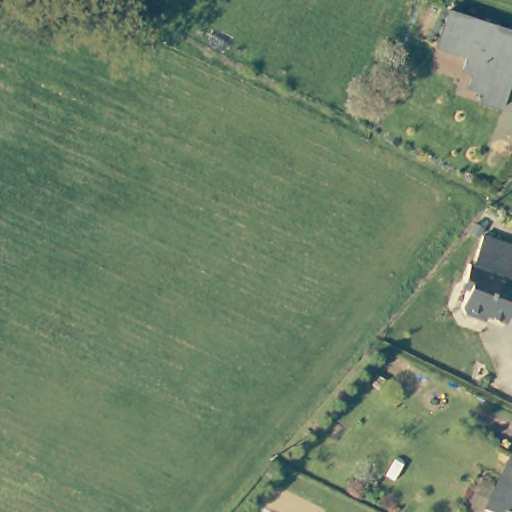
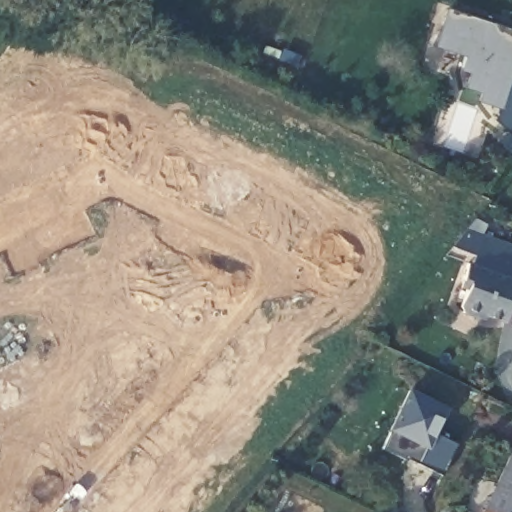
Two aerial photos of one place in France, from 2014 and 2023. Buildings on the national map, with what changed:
unchanged [(481,99),(465,94),(470,79),(461,76),(466,62),(435,51),(449,15),(493,31),(512,38),(512,78),(498,115),(478,108),(481,99)]
new [(512,129),(498,115),(511,81),(512,82),(512,129)]
unchanged [(512,291),(497,320),(477,310),(471,312),(457,305),(455,299),(466,277),(460,274),(468,257),(471,259),(485,231),(512,244),(512,291)]
new [(410,393),(446,411),(435,434),(459,447),(443,479),(418,467),(420,462),(410,457),(406,463),(381,451),(410,393)]
unchanged [(512,454),(512,512),(494,512),(485,508),(512,454)]

